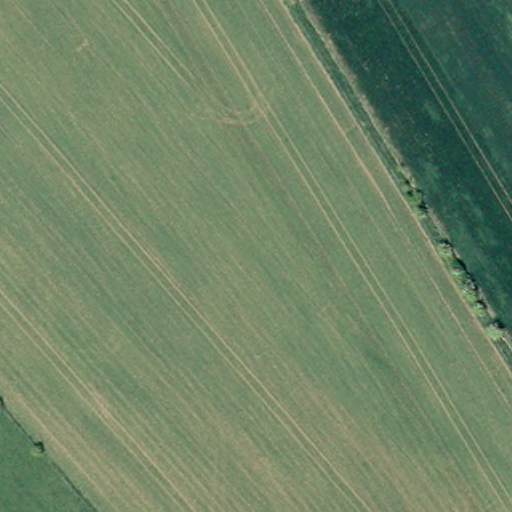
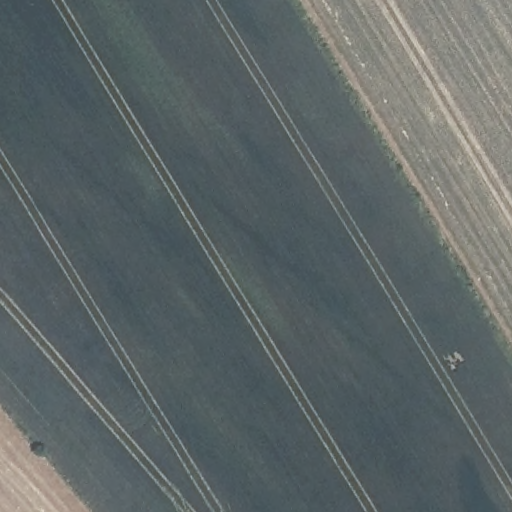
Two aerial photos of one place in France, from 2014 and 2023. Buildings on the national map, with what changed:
[]

